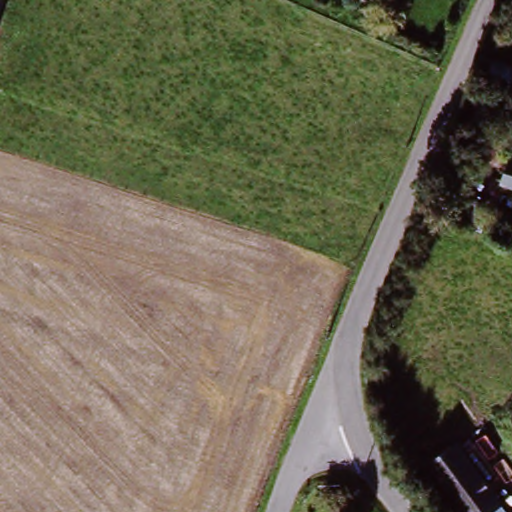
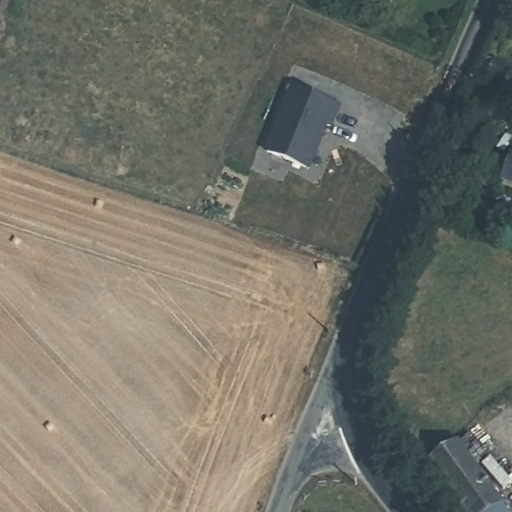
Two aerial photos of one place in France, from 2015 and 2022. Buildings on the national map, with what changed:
new [(341,107),(334,129),(328,127),(309,172),(264,152),(292,86),(341,107)]
unchanged [(499,184),(508,160),(512,162),(512,189),(511,188),(499,184)]
unchanged [(497,236),(484,231),(488,222),(502,228),(497,236)]
unchanged [(464,506),(431,460),(458,441),(502,502),(509,512),(457,512),(464,506)]

